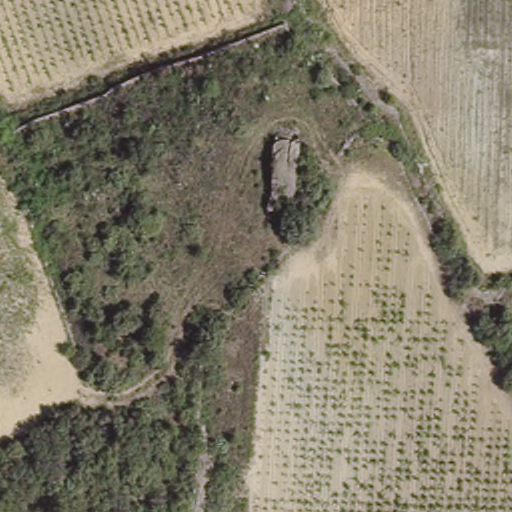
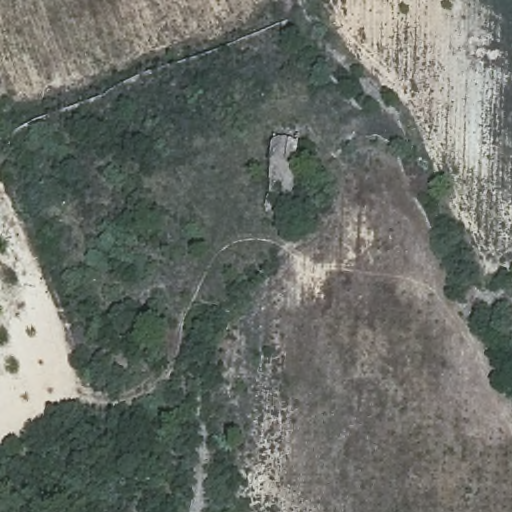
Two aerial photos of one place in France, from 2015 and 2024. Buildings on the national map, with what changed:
unchanged [(301,141),(301,205),(273,204),(274,139),(301,141)]

